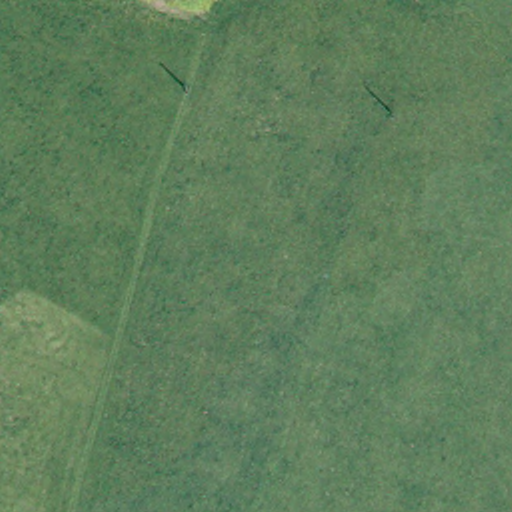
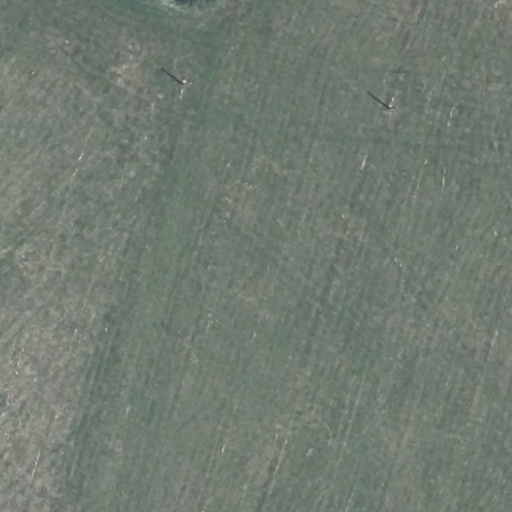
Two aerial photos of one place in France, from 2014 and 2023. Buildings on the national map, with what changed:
[]

